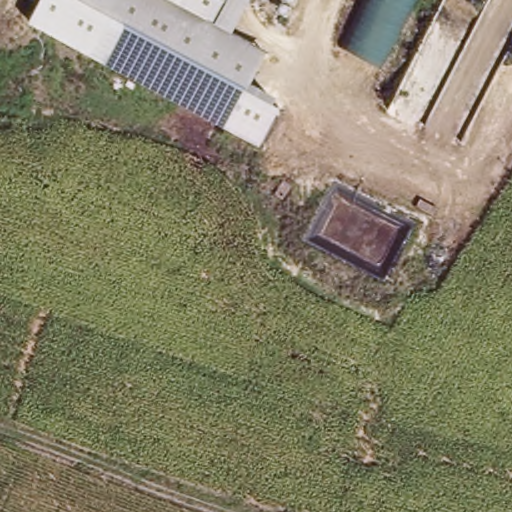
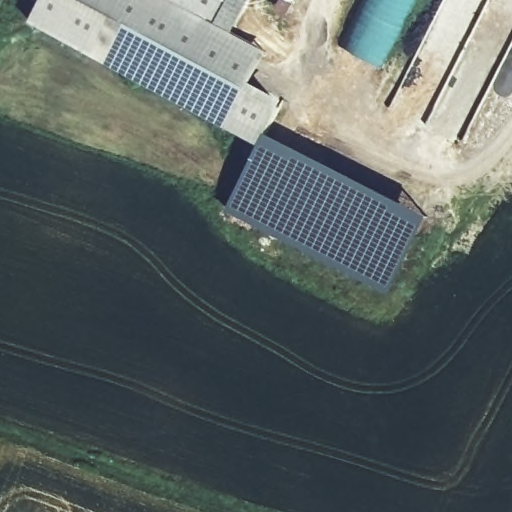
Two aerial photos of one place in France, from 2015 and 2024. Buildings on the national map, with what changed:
unchanged [(237,32),(271,51),(251,89),(285,107),(263,145),(30,24),(43,0),(254,0),(237,32)]
unchanged [(363,0),(417,0),(387,59),(342,39),(363,0)]
new [(260,143),(263,145),(269,134),(429,215),(392,294),(226,211),(260,143)]

